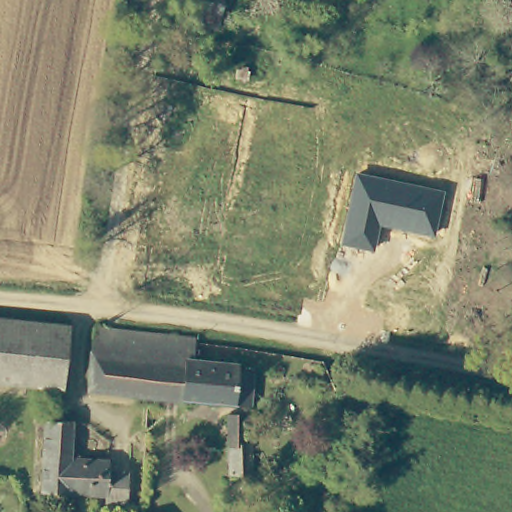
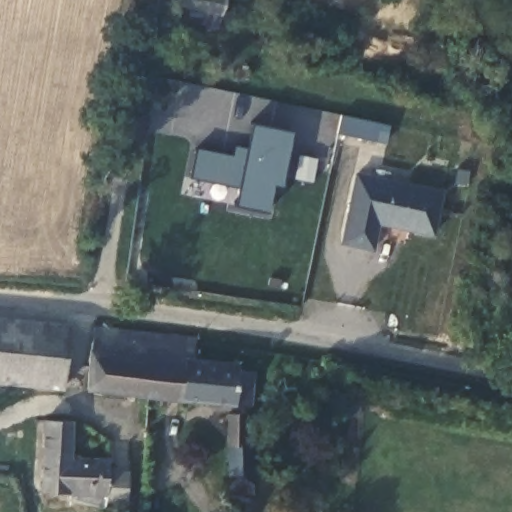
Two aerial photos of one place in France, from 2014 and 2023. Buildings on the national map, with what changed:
unchanged [(220,23),(185,16),(186,5),(178,5),(179,0),(224,0),(220,23)]
new [(293,131),(282,186),(273,185),(268,212),(235,206),(238,188),(190,178),(196,147),(232,156),(234,146),(246,150),(252,123),(293,131)]
unchanged [(434,236),(378,225),(373,250),(340,243),(356,172),(443,190),(434,236)]
unchanged [(69,323),(62,384),(0,378),(0,316),(69,323)]
unchanged [(150,396),(93,391),(99,330),(155,335),(150,396)]
unchanged [(155,335),(201,340),(199,362),(196,400),(154,397),(150,396),(155,335)]
unchanged [(199,362),(244,366),(244,372),(261,373),(259,405),(196,400),(199,362)]
unchanged [(245,411),(244,441),(256,442),(254,473),(229,471),(230,410),(245,411)]
unchanged [(127,504),(105,502),(106,494),(40,493),(45,420),(72,422),(70,458),(108,461),(108,469),(129,470),(127,504)]

